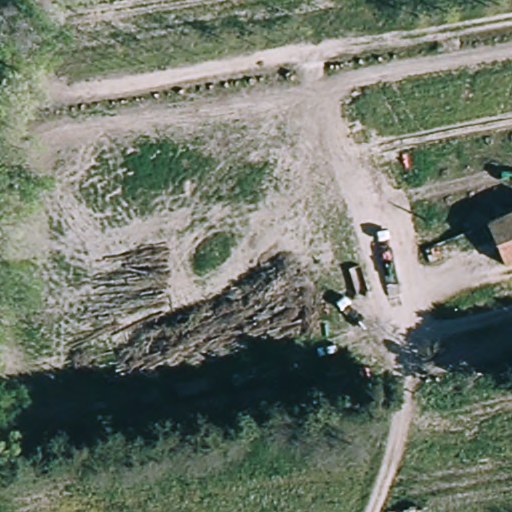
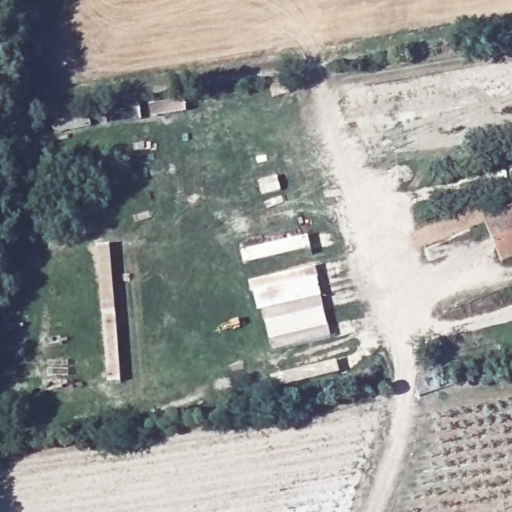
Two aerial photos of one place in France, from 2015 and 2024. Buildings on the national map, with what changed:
unchanged [(486,223),(512,211),(512,262),(505,265),(486,223)]
new [(259,313),(254,294),(252,294),(249,284),(314,269),(331,339),(273,354),(261,312),(259,313)]

